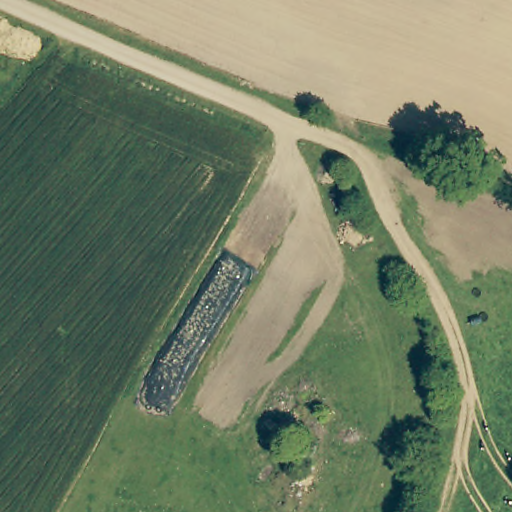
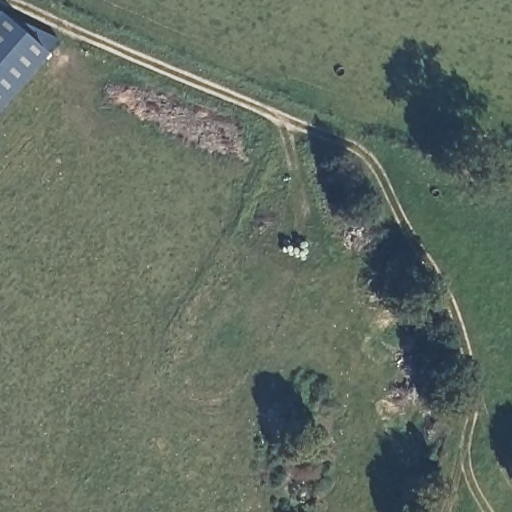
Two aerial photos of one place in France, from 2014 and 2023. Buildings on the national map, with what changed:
new [(57,38),(43,52),(0,106),(0,11),(57,38)]

